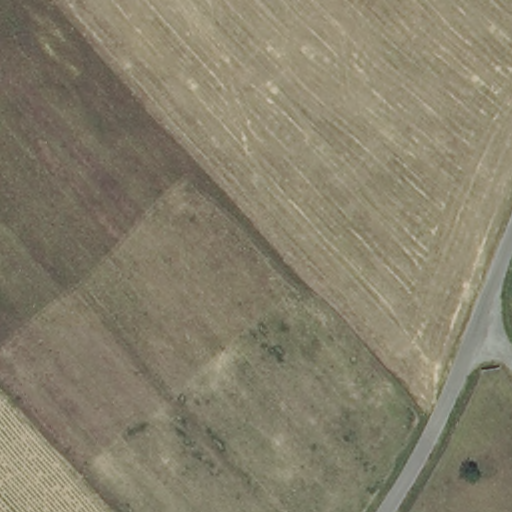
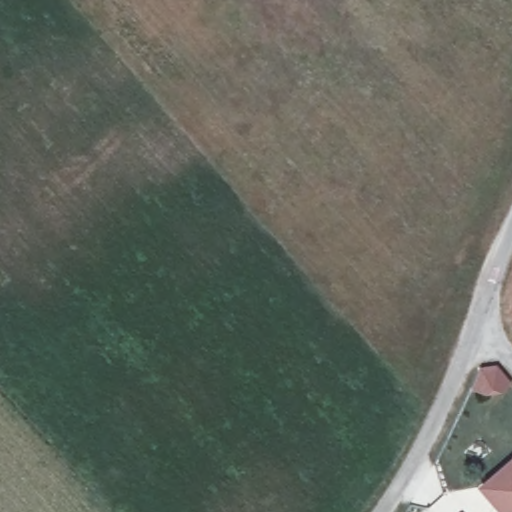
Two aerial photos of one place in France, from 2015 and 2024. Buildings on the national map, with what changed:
new [(496,512),(476,490),(512,458),(512,512),(496,512)]

